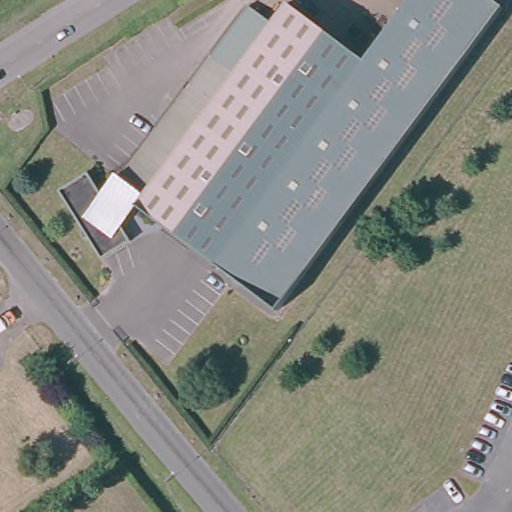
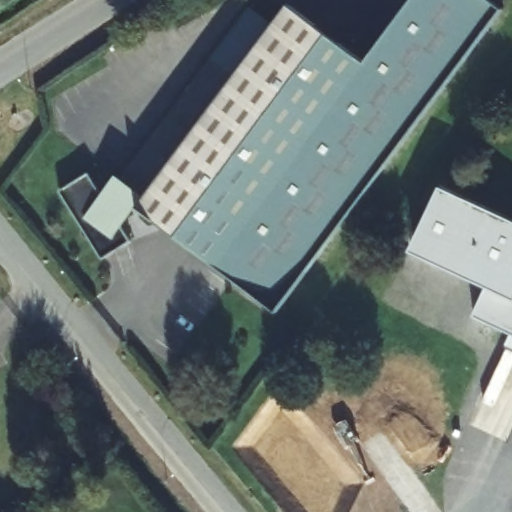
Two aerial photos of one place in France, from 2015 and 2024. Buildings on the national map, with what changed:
unchanged [(98,189),(113,170),(118,175),(246,0),(267,0),(276,7),(281,0),(292,0),(368,57),(411,0),(511,0),(333,235),(319,254),(278,307),(216,261),(135,200),(114,214),(127,236),(99,254),(55,185),(84,166),(98,189)]
new [(504,347),(511,334),(473,317),(487,286),(410,252),(440,187),(512,221),(512,350),(504,347)]

